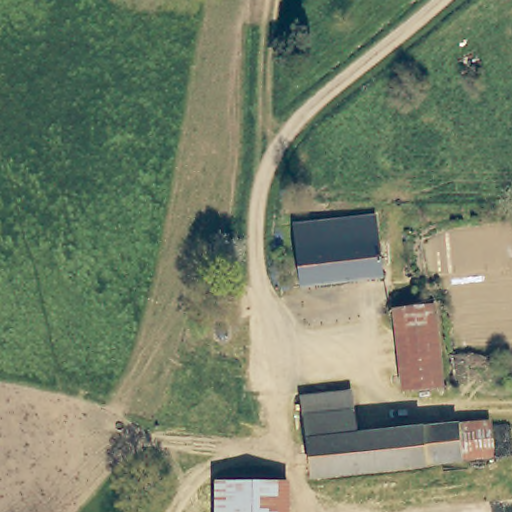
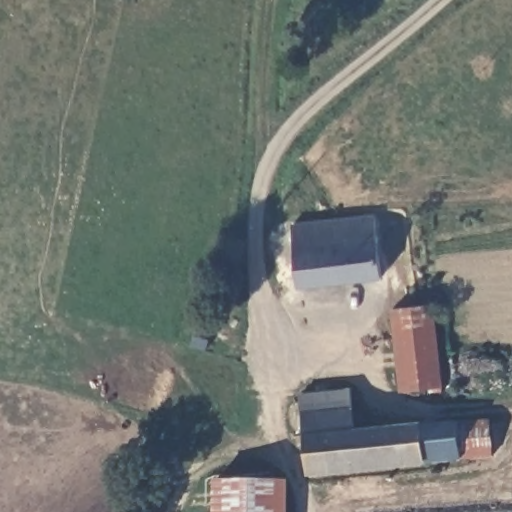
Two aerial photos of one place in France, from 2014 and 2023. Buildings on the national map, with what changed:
unchanged [(374,216),(379,283),(298,290),(292,223),(374,216)]
unchanged [(392,309),(433,305),(444,384),(398,386),(392,309)]
unchanged [(460,417),(464,458),(347,474),(306,479),(295,398),(350,389),(357,431),(449,419),(460,417)]
unchanged [(460,417),(488,414),(493,452),(464,458),(460,417)]
unchanged [(209,481),(279,478),(281,512),(209,512),(209,481)]

